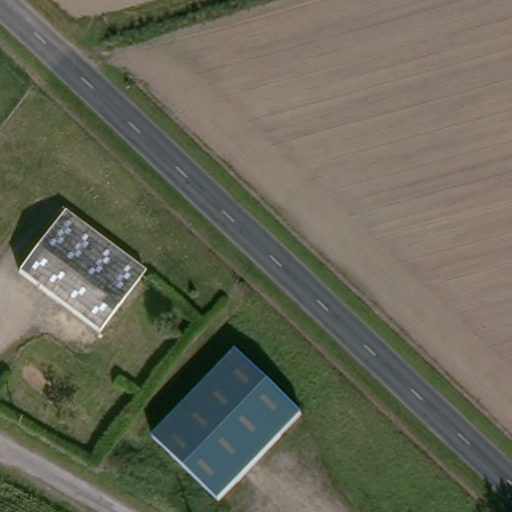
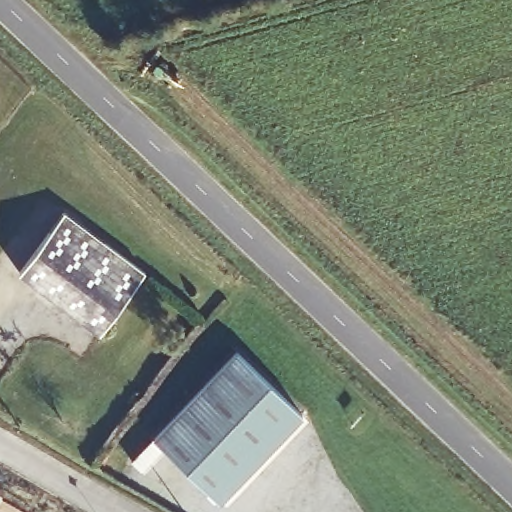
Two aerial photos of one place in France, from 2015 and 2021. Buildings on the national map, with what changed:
unchanged [(100,332),(19,271),(64,211),(145,272),(100,332)]
unchanged [(219,501),(153,438),(236,351),(302,414),(219,501)]

